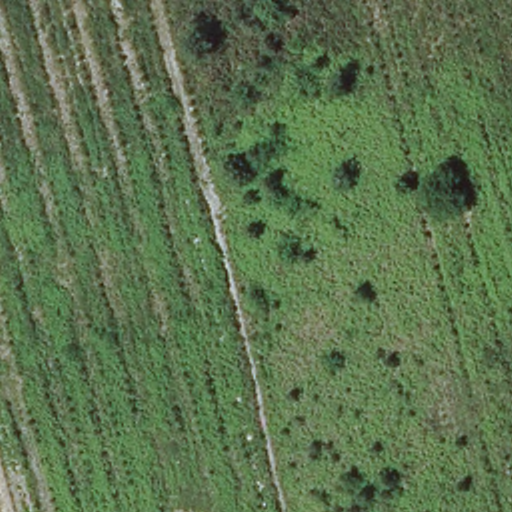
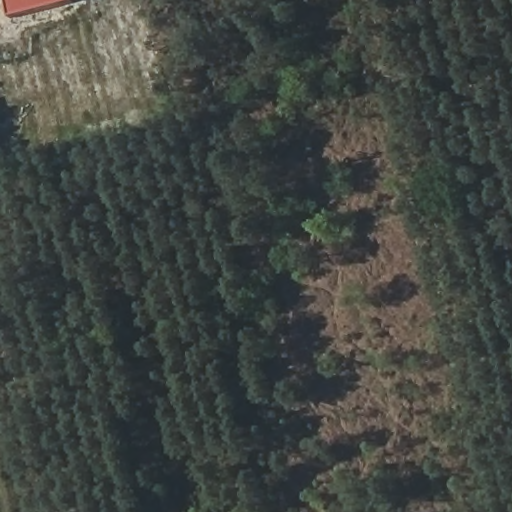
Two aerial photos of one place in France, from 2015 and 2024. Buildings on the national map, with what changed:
new [(12,18),(9,0),(74,0),(75,2),(12,18)]

